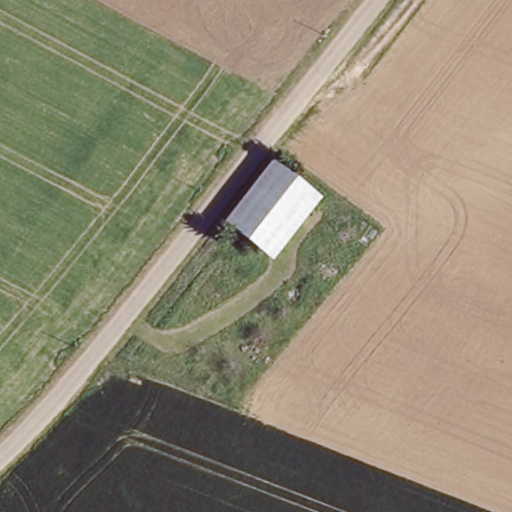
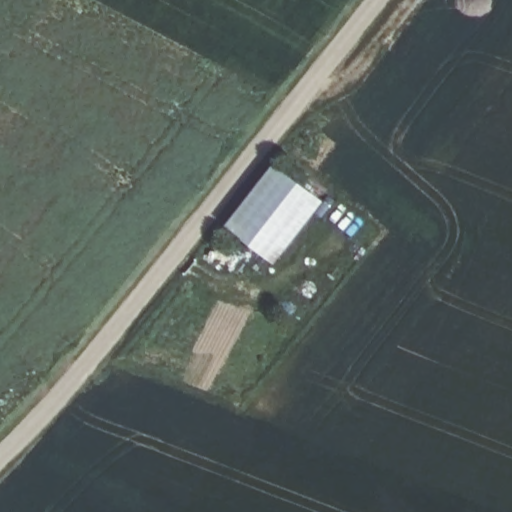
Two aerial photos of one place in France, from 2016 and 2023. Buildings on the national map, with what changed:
unchanged [(324,194),(275,256),(229,219),(277,157),(324,194)]

